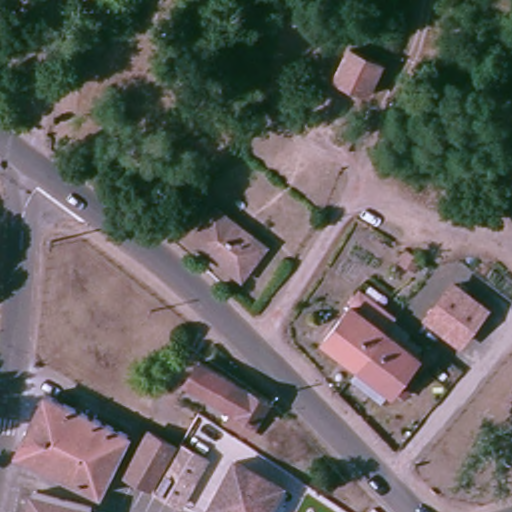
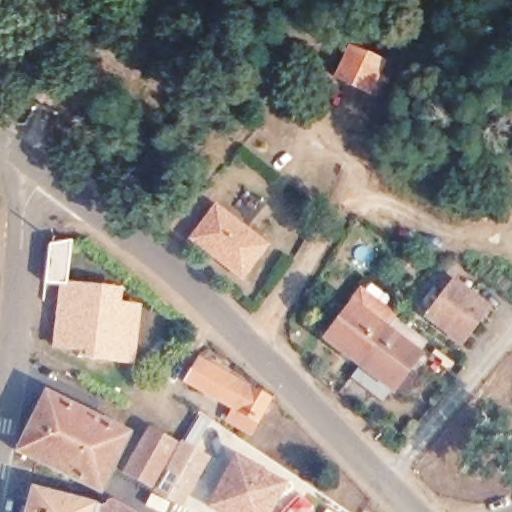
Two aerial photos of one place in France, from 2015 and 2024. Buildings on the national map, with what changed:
unchanged [(361,92),(328,79),(339,50),(373,64),(361,92)]
unchanged [(239,280),(185,240),(211,205),(265,246),(239,280)]
new [(44,283),(48,243),(72,240),(66,281),(123,287),(121,301),(141,305),(133,365),(94,359),(51,349),(58,284),(44,283)]
unchanged [(424,317),(454,277),(494,308),(463,347),(424,317)]
unchanged [(380,338),(354,371),(319,345),(346,311),(380,338)]
unchanged [(412,362),(385,395),(354,371),(380,338),(412,362)]
unchanged [(262,400),(244,434),(228,425),(234,413),(185,388),(198,365),(262,400)]
unchanged [(500,400),(512,381),(512,408),(500,400)]
unchanged [(93,495),(13,455),(39,400),(121,440),(93,495)]
unchanged [(147,485),(122,472),(142,429),(169,442),(147,485)]
unchanged [(180,507),(150,492),(177,437),(205,452),(180,507)]
unchanged [(219,512),(206,505),(229,460),(278,484),(264,512),(219,512)]
new [(104,505),(105,503),(108,501),(114,503),(124,507),(130,512),(81,512),(28,497),(31,486),(104,505)]
unchanged [(81,512),(25,512),(28,497),(81,512)]
demolished [(377,508),(372,512),(366,512),(359,505),(367,498),(376,507),(377,508)]

